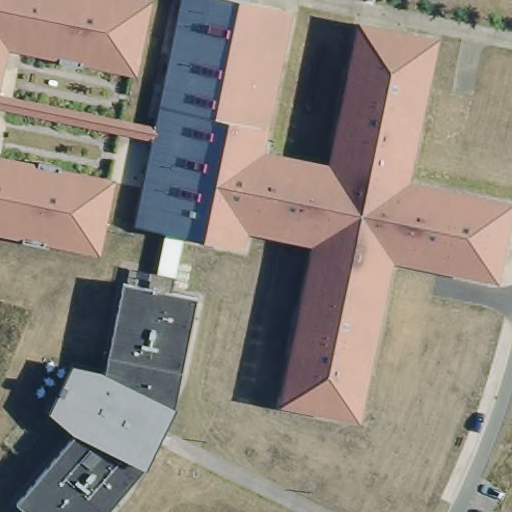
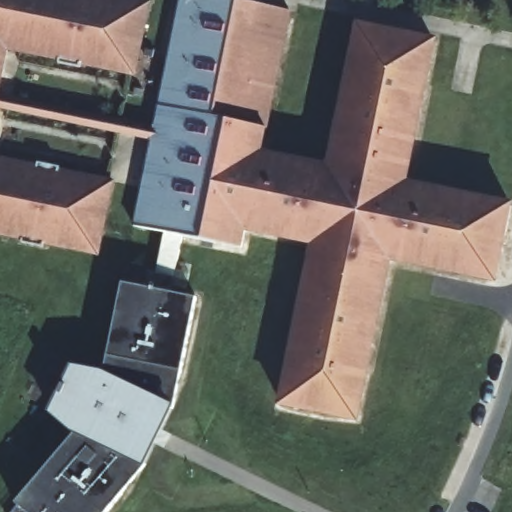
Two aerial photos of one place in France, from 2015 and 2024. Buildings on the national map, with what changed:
unchanged [(135,76),(8,51),(0,88),(0,0),(151,0),(135,76)]
unchanged [(248,1),(293,7),(268,128),(263,152),(328,164),(356,22),(438,39),(409,182),(512,203),(512,210),(496,285),(392,263),(358,423),(276,405),(309,246),(246,235),(241,253),(181,237),(169,293),(198,300),(174,407),(146,467),(108,512),(10,512),(14,506),(73,433),(48,407),(70,362),(104,370),(124,280),(153,287),(163,234),(133,226),(149,142),(0,113),(0,93),(153,125),(177,0),(248,0),(248,1)]
unchanged [(112,180),(96,255),(0,236),(0,157),(112,180)]

